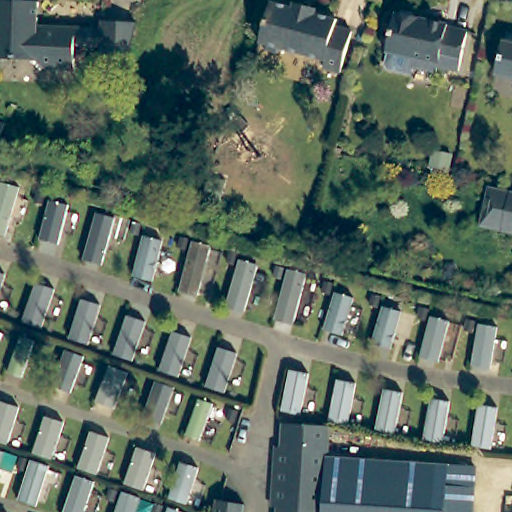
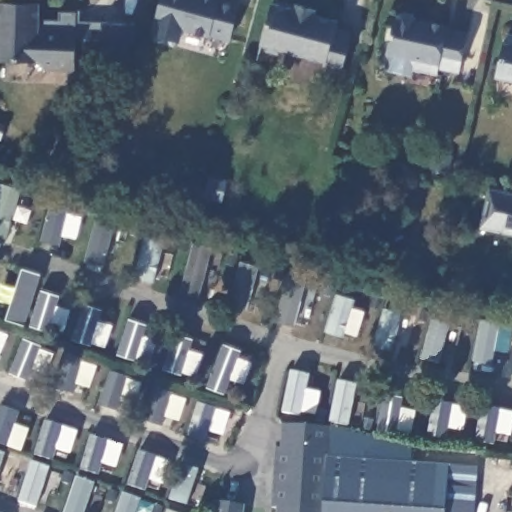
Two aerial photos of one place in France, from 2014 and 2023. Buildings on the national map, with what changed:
new [(184,27),(180,40),(151,31),(159,0),(237,0),(240,1),(230,41),(184,27)]
unchanged [(0,62),(0,12),(0,4),(40,6),(39,31),(102,34),(103,26),(137,29),(129,61),(101,60),(101,51),(77,50),(75,74),(45,73),(37,65),(0,62)]
unchanged [(277,10),(298,15),(300,10),(322,16),(321,21),(342,26),(340,33),(357,37),(346,78),(330,74),(331,67),(286,55),(281,60),(270,56),(270,51),(266,49),(277,10)]
unchanged [(450,31),(450,34),(470,38),(462,77),(441,73),(440,79),(416,74),(415,81),(391,76),(389,71),(391,59),(390,59),(398,19),(400,20),(406,16),(416,18),(420,24),(450,31)]
unchanged [(497,81),(505,45),(508,45),(510,38),(512,38),(512,84),(497,81)]
unchanged [(491,208),(493,192),(512,196),(512,214),(491,208)]
unchanged [(487,233),(491,208),(512,214),(512,237),(487,233)]
unchanged [(339,432),(337,462),(485,472),(482,512),(288,512),(288,511),(281,510),(285,450),(292,451),(294,428),(331,430),(339,431),(339,432)]
unchanged [(244,504),(243,512),(214,512),(216,500),(244,504)]

